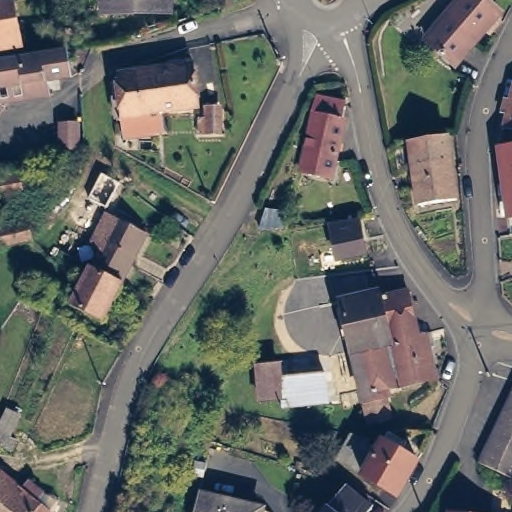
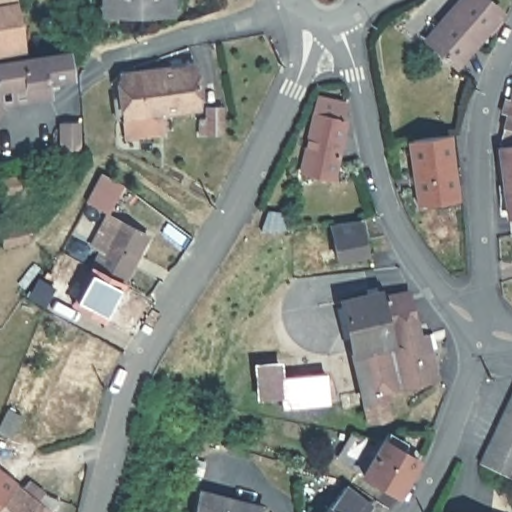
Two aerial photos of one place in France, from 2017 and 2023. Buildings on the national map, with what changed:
unchanged [(0,7),(0,0),(18,0),(19,3),(0,7)]
unchanged [(167,0),(167,8),(105,8),(105,0),(167,0)]
unchanged [(497,12),(502,17),(492,29),(487,25),(457,61),(430,37),(460,0),(492,0),(501,8),(497,12)]
unchanged [(26,41),(0,45),(0,7),(19,3),(26,41)]
unchanged [(75,80),(53,82),(55,96),(7,104),(0,114),(0,64),(71,52),(75,80)]
unchanged [(120,102),(125,101),(123,83),(127,77),(153,74),(176,71),(175,64),(185,64),(187,70),(200,68),(205,108),(160,112),(161,133),(130,137),(128,121),(123,121),(123,120),(120,102)]
unchanged [(343,121),(347,121),(333,180),(303,174),(316,114),(315,114),(320,99),(331,101),(332,100),(347,103),(343,121)]
unchanged [(510,113),(512,103),(512,114),(510,113)]
unchanged [(225,137),(210,137),(210,112),(225,112),(225,137)]
unchanged [(57,122),(77,121),(78,151),(57,150),(57,122)]
unchanged [(509,145),(512,132),(512,144),(509,145)]
unchanged [(460,201),(422,207),(412,142),(452,135),(460,201)]
unchanged [(507,148),(512,147),(512,191),(507,148)]
unchanged [(8,180),(22,178),(23,192),(0,196),(0,168),(5,167),(8,180)]
unchanged [(107,172),(123,184),(107,214),(89,206),(107,172)]
unchanged [(265,206),(284,212),(280,231),(259,226),(265,206)]
unchanged [(96,268),(105,252),(95,247),(111,217),(151,237),(127,285),(96,268)]
unchanged [(362,220),(368,254),(341,260),(333,224),(362,220)]
unchanged [(2,240),(0,232),(0,226),(27,221),(31,235),(2,240)]
unchanged [(108,322),(77,304),(95,268),(96,268),(127,285),(108,322)]
unchanged [(35,280),(53,289),(43,307),(23,296),(35,280)]
unchanged [(340,397),(335,372),(358,367),(355,355),(393,346),(384,297),(411,292),(422,336),(430,335),(435,333),(437,347),(432,348),(439,380),(387,393),(393,420),(372,425),(367,406),(345,411),(342,397),(340,397)]
unchanged [(345,302),(383,293),(384,297),(393,346),(355,355),(345,302)]
unchanged [(327,372),(330,396),(330,404),(285,410),(285,400),(262,402),(260,367),(282,366),(283,377),(300,375),(327,372)]
unchanged [(232,399),(217,396),(221,378),(236,382),(232,399)]
unchanged [(482,465),(512,403),(512,478),(492,469),(482,465)]
unchanged [(10,438),(17,443),(11,454),(0,448),(0,424),(6,411),(20,417),(10,438)]
unchanged [(408,450),(405,457),(421,466),(420,467),(402,501),(365,481),(367,478),(340,462),(353,442),(354,440),(387,447),(390,443),(392,440),(399,443),(408,450)]
unchanged [(0,468),(4,465),(13,473),(10,478),(22,488),(2,512),(0,512),(0,468)]
unchanged [(47,496),(63,502),(55,512),(2,512),(22,488),(25,491),(32,484),(47,496)]
unchanged [(373,512),(328,512),(347,487),(375,510),(373,512)]
unchanged [(197,495),(260,510),(259,512),(193,512),(197,495)]

